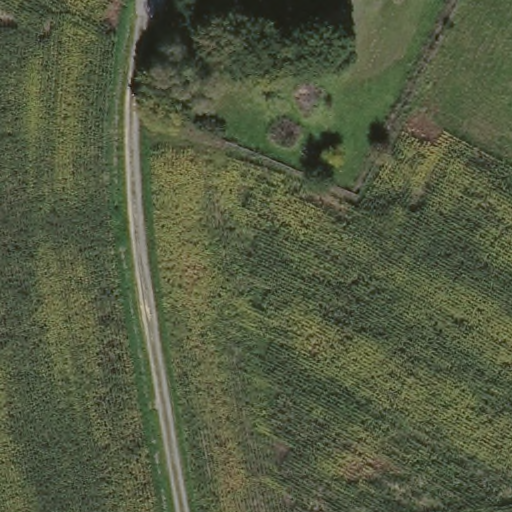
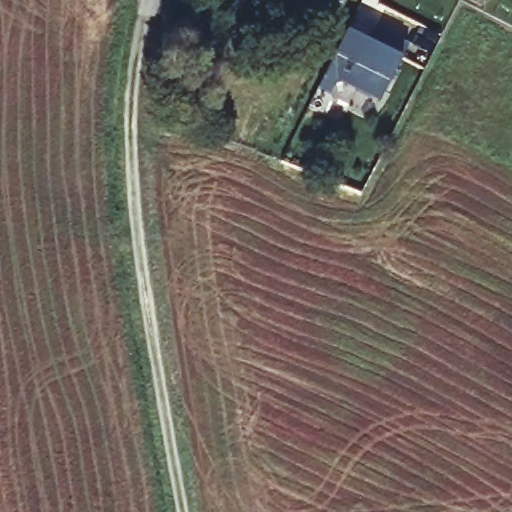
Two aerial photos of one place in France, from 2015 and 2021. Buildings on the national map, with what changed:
new [(331,96),(320,90),(348,35),(359,40),(369,46),(376,32),(409,49),(382,104),(349,87),(338,82),(331,96)]

